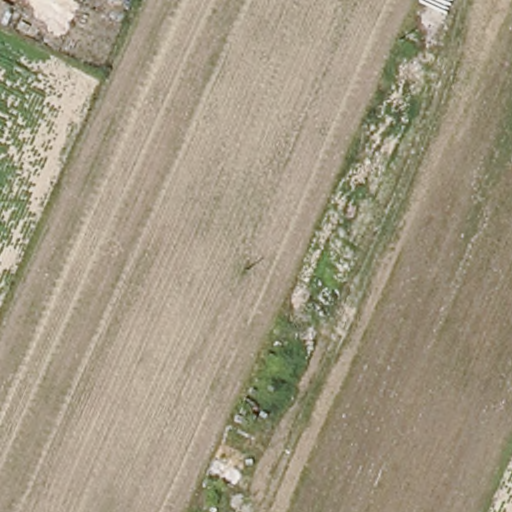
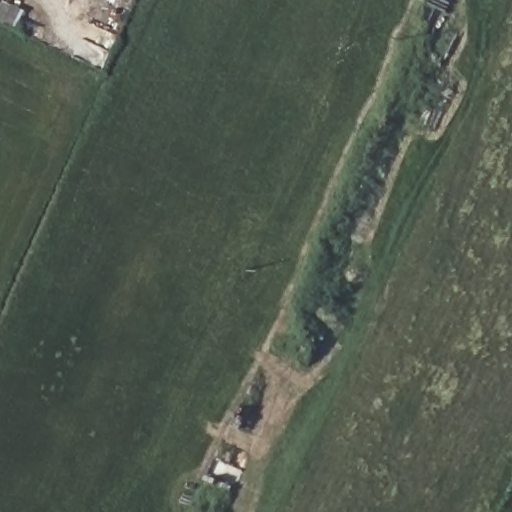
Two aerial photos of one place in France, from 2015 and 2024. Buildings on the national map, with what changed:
[]

